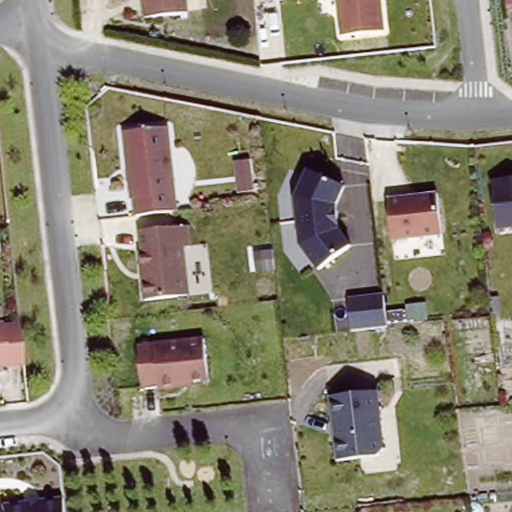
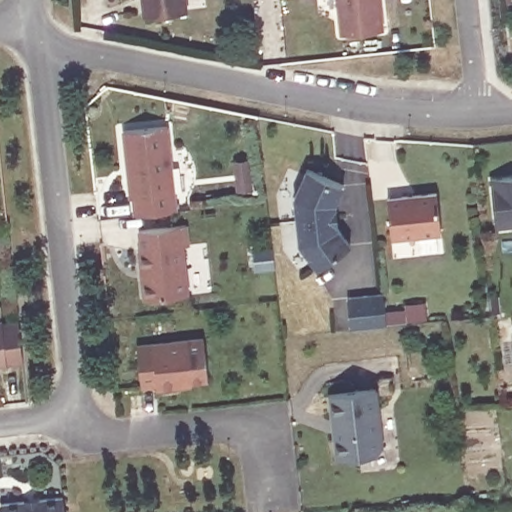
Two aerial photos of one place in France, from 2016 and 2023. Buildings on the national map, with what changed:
unchanged [(141,22),(139,0),(182,0),(183,18),(141,22)]
unchanged [(338,33),(334,0),(381,0),(384,29),(338,33)]
unchanged [(129,198),(128,198),(121,131),(164,126),(173,210),(131,215),(129,198)]
unchanged [(345,185),(338,203),(339,228),(352,244),(316,270),(299,244),(294,197),(306,169),(345,185)]
unchanged [(512,177),(512,226),(495,228),(490,179),(512,177)]
unchanged [(438,191),(443,234),(391,241),(387,196),(438,191)]
unchanged [(183,230),(186,251),(180,251),(185,300),(141,304),(139,285),(142,285),(141,274),(138,274),(136,255),(138,255),(136,235),(183,230)]
unchanged [(384,292),(385,307),(404,308),(404,302),(427,301),(428,320),(349,328),(346,296),(384,292)]
unchanged [(16,365),(0,367),(0,324),(13,323),(16,365)]
unchanged [(204,383),(176,386),(176,391),(154,393),(154,389),(138,390),(134,349),(201,343),(204,383)]
unchanged [(379,448),(374,455),(333,460),(329,435),(334,434),(333,424),(328,420),(326,395),(373,390),(379,448)]
unchanged [(0,503),(23,501),(36,499),(59,497),(61,512),(0,512),(0,503)]

